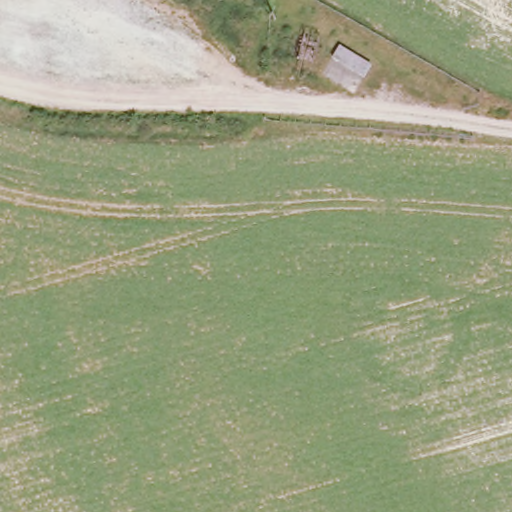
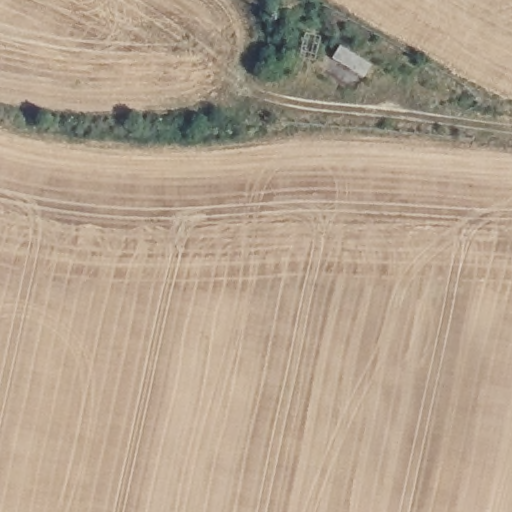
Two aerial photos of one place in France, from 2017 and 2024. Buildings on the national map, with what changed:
unchanged [(375,63),(362,85),(334,69),(339,59),(331,54),(339,40),(375,63)]

